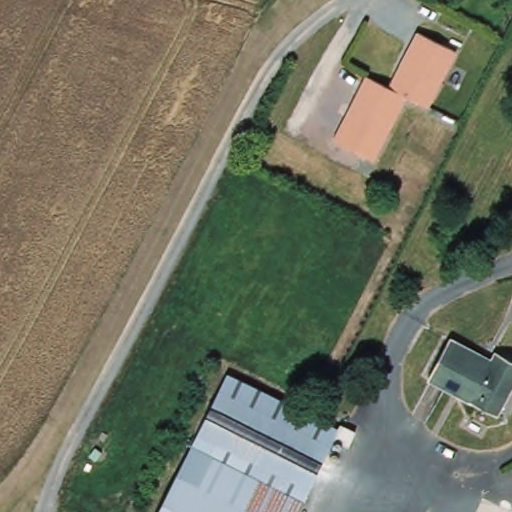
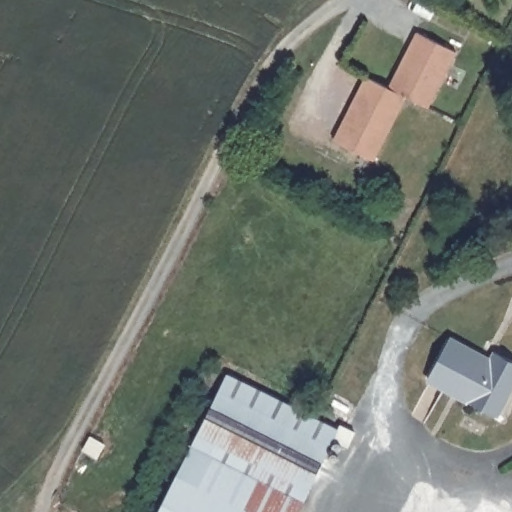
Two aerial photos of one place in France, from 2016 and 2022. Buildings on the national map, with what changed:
unchanged [(457,48),(428,106),(407,96),(375,160),(338,142),(369,78),(391,88),(419,30),(457,48)]
unchanged [(512,357),(512,385),(496,416),(428,380),(452,337),(491,358),(497,350),(512,357)]
unchanged [(225,374),(336,432),(295,512),(155,512),(225,374)]

